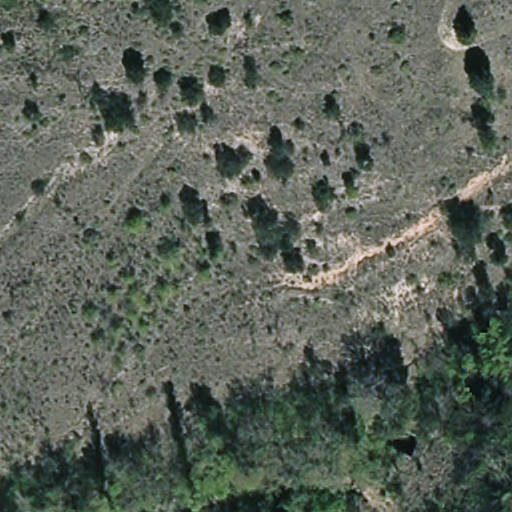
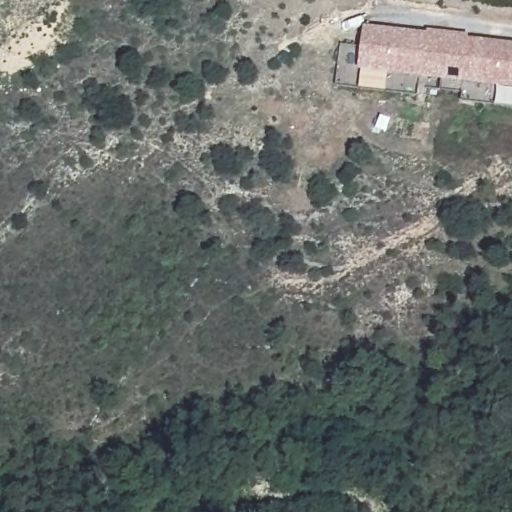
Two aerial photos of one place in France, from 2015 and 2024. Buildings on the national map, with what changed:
new [(462,102),(463,92),(418,87),(417,96),(336,87),(341,45),(362,45),(364,26),(427,34),(429,30),(469,35),(468,39),(512,44),(512,108),(462,102)]

